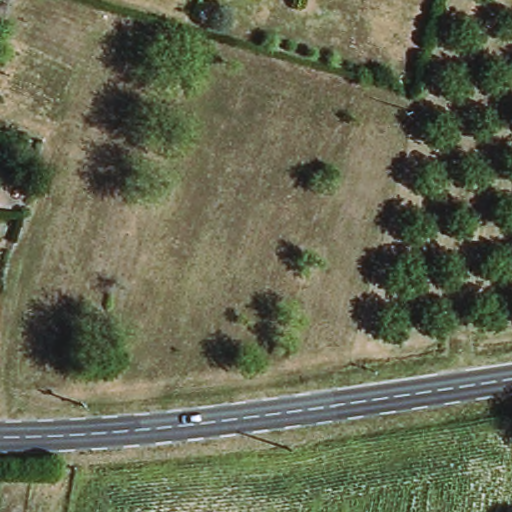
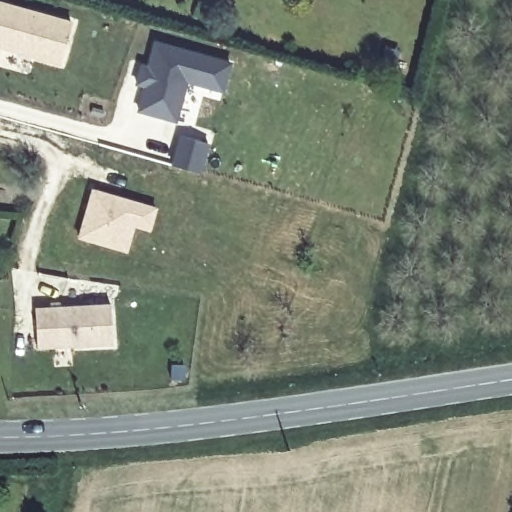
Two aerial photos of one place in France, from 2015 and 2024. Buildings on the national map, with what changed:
new [(72,22),(59,66),(0,47),(0,1),(72,22)]
new [(138,112),(144,87),(136,85),(141,63),(148,65),(155,42),(232,63),(224,92),(187,82),(176,122),(138,112)]
new [(178,134),(210,142),(201,173),(170,164),(178,134)]
new [(91,187),(159,206),(151,232),(135,227),(127,252),(76,237),(91,187)]
new [(38,350),(37,307),(110,303),(113,346),(38,350)]

